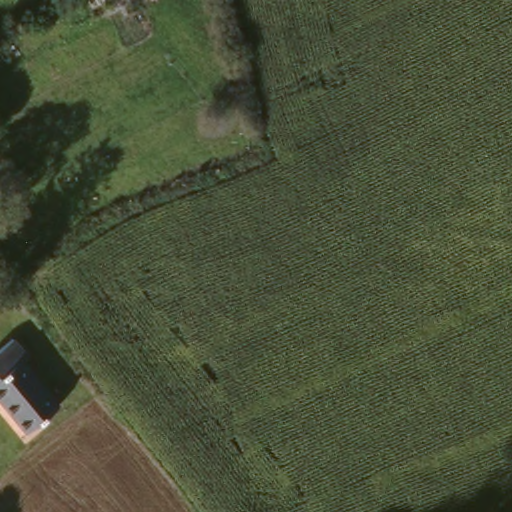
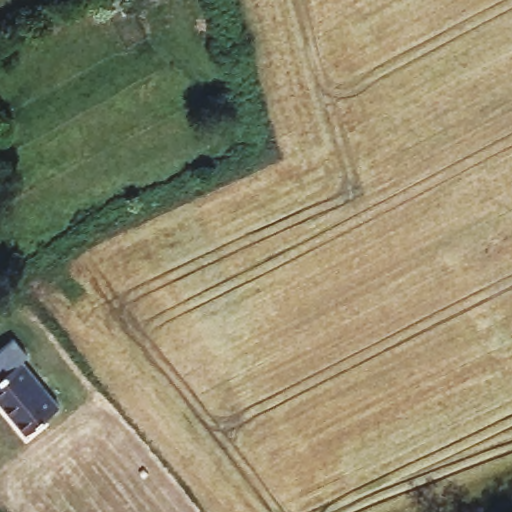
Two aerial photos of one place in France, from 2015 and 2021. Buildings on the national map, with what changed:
unchanged [(0,353),(17,340),(31,357),(24,363),(61,408),(29,434),(0,397),(0,353)]

